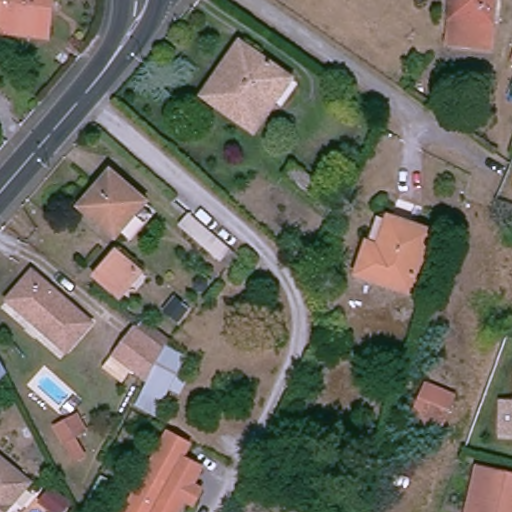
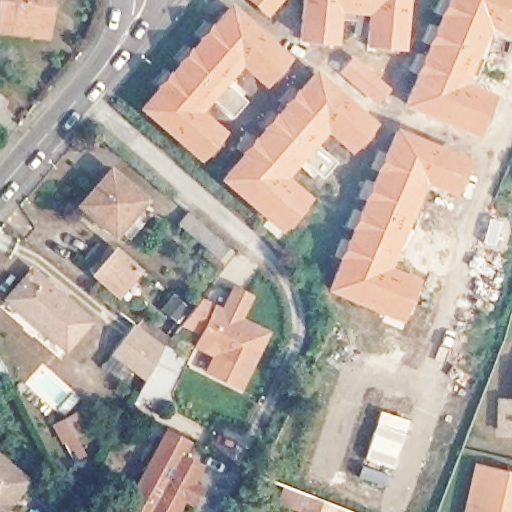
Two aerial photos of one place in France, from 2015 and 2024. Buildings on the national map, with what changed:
unchanged [(43,38),(0,35),(0,0),(46,0),(45,17),(43,38)]
new [(247,0),(283,0),(268,18),(247,0)]
new [(406,0),(401,50),(365,48),(365,15),(340,13),(335,44),(298,40),(300,0),(406,0)]
new [(443,0),(512,0),(512,39),(490,31),(482,48),(487,49),(472,83),(493,93),(474,135),(401,104),(431,26),(443,0)]
demolished [(496,0),(495,12),(453,8),(454,0),(496,0)]
new [(232,121),(211,102),(203,111),(228,133),(201,163),(136,108),(175,59),(228,2),(295,59),(265,90),(241,69),(232,79),(251,99),(232,121)]
demolished [(283,70),(270,88),(277,93),(253,124),(204,88),(215,74),(221,78),(248,44),(283,70)]
demolished [(508,60),(512,52),(512,64),(508,60)]
new [(353,54),(392,89),(378,106),(338,71),(353,54)]
new [(319,184),(299,166),(288,176),(310,195),(281,232),(217,178),(252,135),(314,68),(380,124),(350,156),(327,136),(320,143),(341,159),(319,184)]
new [(349,225),(374,168),(395,126),(466,155),(453,194),(425,184),(413,209),(417,211),(390,264),(419,277),(401,324),(324,290),(349,225)]
unchanged [(143,194),(116,227),(81,198),(111,165),(143,194)]
demolished [(432,230),(412,288),(360,269),(380,212),(432,230)]
unchanged [(223,259),(182,225),(192,214),(233,249),(223,259)]
unchanged [(115,255),(139,274),(117,299),(95,280),(115,255)]
unchanged [(35,268),(90,316),(66,344),(10,298),(35,268)]
new [(206,300),(228,312),(239,289),(255,297),(244,320),(272,334),(245,388),(211,372),(219,356),(201,346),(207,334),(187,324),(206,300)]
unchanged [(131,357),(146,338),(173,360),(156,394),(135,376),(123,366),(131,357)]
unchanged [(9,369),(0,379),(0,352),(1,354),(9,369)]
unchanged [(449,388),(439,417),(427,413),(419,429),(406,424),(421,379),(449,388)]
unchanged [(507,436),(508,407),(512,407),(512,436),(507,436)]
unchanged [(84,418),(95,439),(76,449),(65,428),(84,418)]
unchanged [(179,431),(199,443),(190,458),(209,469),(199,486),(208,491),(199,505),(191,500),(183,512),(130,512),(179,431)]
unchanged [(36,477),(17,499),(13,498),(3,509),(0,511),(0,445),(26,469),(36,477)]
unchanged [(473,467),(512,472),(512,512),(467,512),(473,467)]
unchanged [(339,512),(310,512),(317,499),(342,508),(339,512)]

